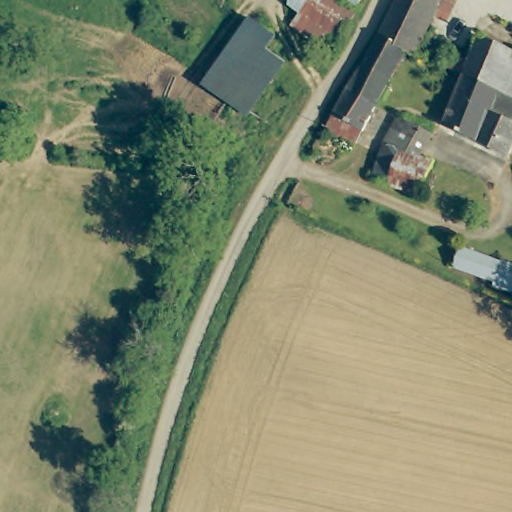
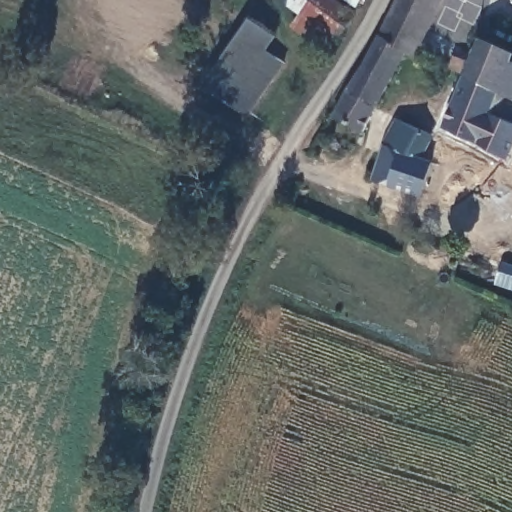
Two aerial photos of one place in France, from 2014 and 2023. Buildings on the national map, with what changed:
unchanged [(331,0),(354,16),(329,51),(292,26),(310,0),(331,0)]
unchanged [(351,0),(365,0),(361,6),(351,0)]
unchanged [(444,0),(414,54),(407,51),(381,38),(400,0),(444,0)]
unchanged [(202,87),(246,26),(267,43),(260,53),(224,103),(202,87)]
unchanged [(484,35),(512,44),(512,113),(497,106),(502,91),(493,86),(468,73),(484,35)]
unchanged [(381,38),(407,51),(378,106),(365,131),(339,118),(352,93),(381,38)]
unchanged [(260,53),(278,66),(242,117),(224,103),(260,53)]
unchanged [(512,153),(447,123),(468,73),(493,86),(502,91),(497,106),(512,113),(512,152),(512,153)]
unchanged [(388,150),(404,120),(432,133),(422,159),(433,163),(422,196),(393,186),(378,181),(388,150)]
unchanged [(497,283),(454,271),(462,248),(503,265),(512,266),(512,289),(497,283)]

